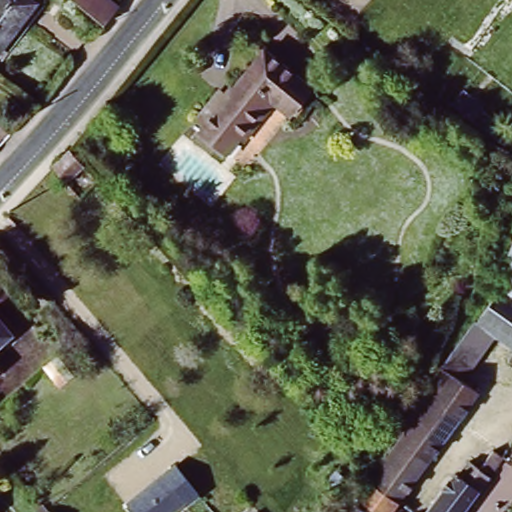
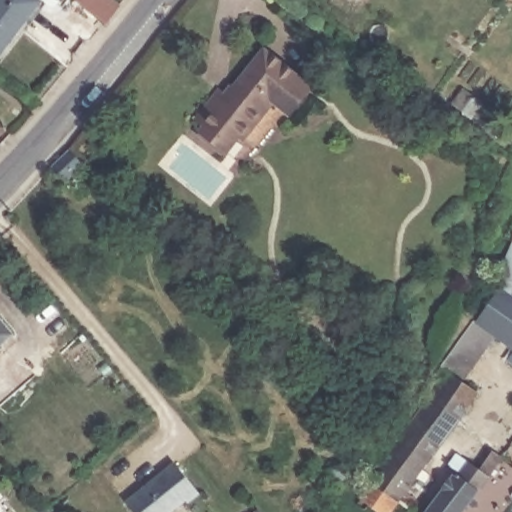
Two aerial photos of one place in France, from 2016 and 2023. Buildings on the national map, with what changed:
unchanged [(0,0),(32,0),(0,45),(0,0)]
unchanged [(291,111),(277,99),(245,137),(240,132),(228,147),(200,124),(205,115),(200,111),(223,84),(231,92),(268,43),(313,82),(291,111)]
unchanged [(58,168),(76,152),(90,167),(72,184),(58,168)]
unchanged [(498,291),(512,252),(512,298),(498,291)]
unchanged [(512,298),(512,349),(497,339),(480,380),(450,356),(480,320),(486,310),(498,291),(512,298)]
unchanged [(0,344),(0,316),(15,332),(0,344)]
unchanged [(452,378),(482,393),(393,512),(375,512),(359,501),(355,498),(358,494),(452,378)]
unchanged [(450,477),(455,480),(465,466),(472,462),(479,468),(492,452),(504,461),(480,490),(464,512),(424,512),(450,477)]
unchanged [(200,492),(187,502),(183,497),(165,512),(130,512),(124,506),(175,462),(200,492)]

